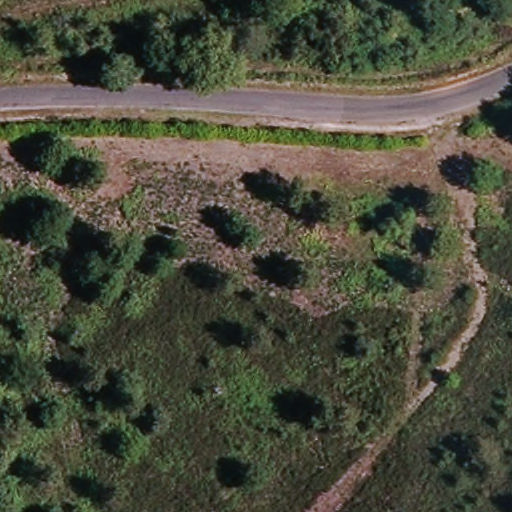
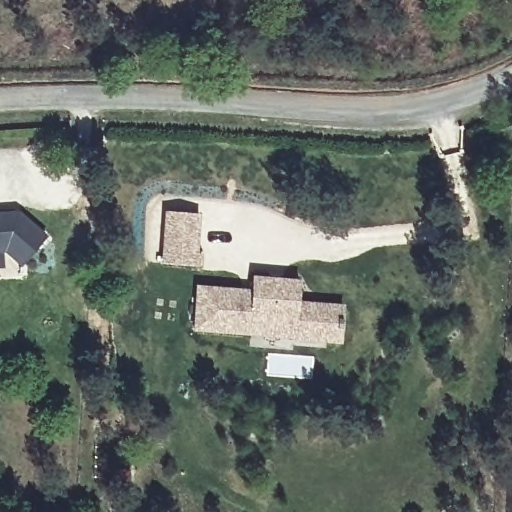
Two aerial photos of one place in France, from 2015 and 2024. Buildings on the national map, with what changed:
new [(19,210),(48,234),(25,262),(7,248),(0,249),(0,212),(19,210)]
new [(202,265),(197,264),(165,262),(168,210),(200,212),(198,252),(203,252),(202,265)]
new [(199,330),(202,290),(217,290),(217,288),(256,290),(257,276),(303,278),(301,301),(328,303),(347,305),(344,341),(326,340),(298,338),(298,336),(256,333),(199,330)]

